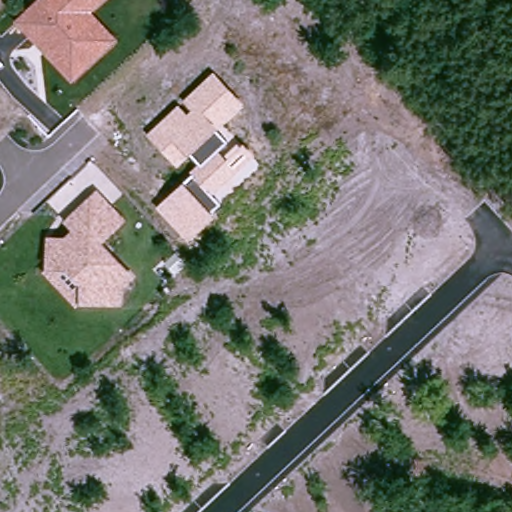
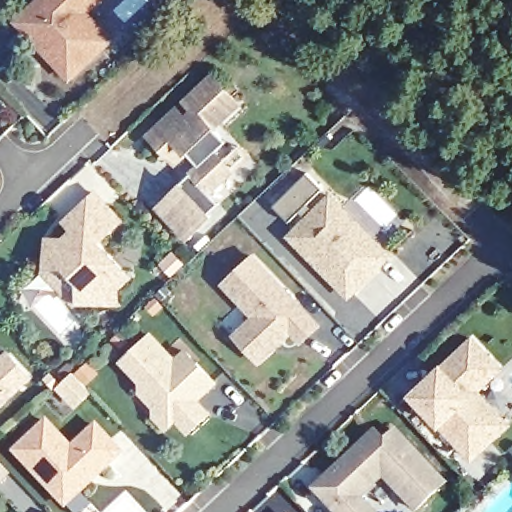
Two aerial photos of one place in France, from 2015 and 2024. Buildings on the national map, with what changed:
unchanged [(93,10),(119,39),(71,83),(13,20),(36,0),(104,0),(93,10)]
unchanged [(245,104),(217,131),(227,142),(219,149),(229,159),(244,143),(254,155),(213,194),(220,203),(210,210),(217,217),(188,243),(156,207),(193,174),(190,171),(198,164),(190,155),(176,167),(145,135),(213,71),(245,104)]
new [(308,173),(324,190),(289,222),(274,206),(308,173)]
unchanged [(127,220),(103,242),(135,276),(120,290),(120,305),(80,304),(77,307),(42,271),(45,269),(46,237),(64,238),(73,231),(63,221),(96,190),(127,220)]
new [(327,271),(298,240),(314,225),(309,220),(336,195),(358,218),(380,242),(393,256),(354,293),(350,296),(327,271)]
new [(260,360),(236,335),(256,316),(225,283),(254,256),(318,324),(302,340),(292,329),(280,341),(273,348),(260,360)]
new [(142,391),(141,381),(123,361),(150,335),(175,361),(186,351),(215,381),(204,391),(196,399),(208,412),(189,431),(176,417),(166,427),(154,415),(155,406),(142,391)]
new [(473,338),(500,368),(477,390),(509,424),(472,458),(413,395),(473,338)]
new [(34,377),(0,409),(0,359),(9,350),(34,377)]
unchanged [(37,473),(15,450),(47,421),(72,448),(97,425),(122,451),(96,475),(66,504),(37,473)]
new [(371,434),(376,430),(385,441),(397,430),(445,481),(417,508),(384,473),(360,496),(365,501),(375,512),(338,512),(315,487),(371,434)]

